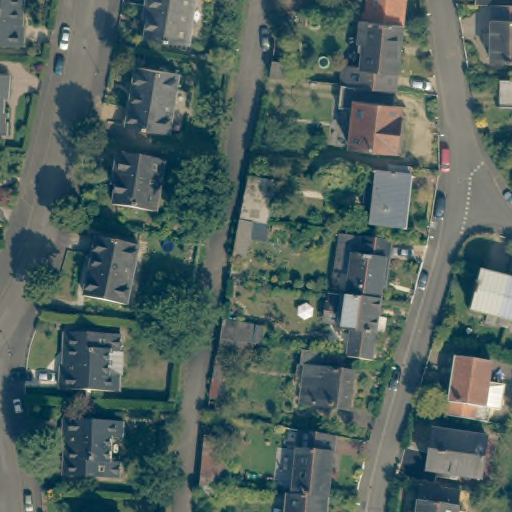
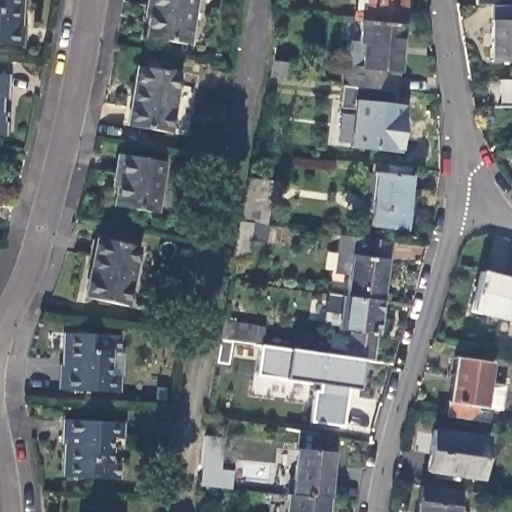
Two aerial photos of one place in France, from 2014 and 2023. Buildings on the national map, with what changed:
unchanged [(0,0),(17,0),(16,32),(20,32),(19,52),(0,51),(0,0)]
unchanged [(141,34),(144,14),(142,14),(144,0),(190,0),(184,40),(141,34)]
unchanged [(365,9),(366,0),(403,0),(401,20),(358,16),(352,15),(354,7),(365,9)]
unchanged [(508,0),(508,16),(486,15),(469,15),(470,0),(508,0)]
unchanged [(485,71),(486,15),(508,16),(512,16),(512,72),(485,71)]
unchanged [(394,86),(391,86),(342,81),(344,62),(358,64),(361,40),(356,39),(358,16),(401,20),(394,86)]
unchanged [(284,66),(283,80),(269,78),(271,65),(284,66)]
unchanged [(182,76),(172,135),(129,127),(140,69),(182,76)]
unchanged [(1,99),(0,113),(6,113),(5,135),(0,135),(0,75),(8,75),(7,99),(1,99)]
unchanged [(389,107),(404,109),(401,147),(349,142),(352,106),(337,104),(339,81),(342,81),(391,86),(389,107)]
unchanged [(503,112),(504,85),(512,85),(512,112),(503,112)]
unchanged [(154,215),(112,206),(116,187),(113,186),(120,155),(163,164),(154,215)]
unchanged [(408,183),(403,182),(397,229),(373,226),(379,180),(371,179),(371,171),(409,175),(408,183)]
unchanged [(231,261),(238,224),(247,182),(270,186),(263,227),(247,225),(240,263),(231,261)]
unchanged [(346,277),(333,275),(338,236),(386,242),(378,301),(344,297),(346,277)]
unchanged [(138,249),(127,307),(85,299),(97,241),(138,249)]
unchanged [(512,280),(512,322),(469,312),(479,272),(512,280)]
unchanged [(333,329),(333,323),(321,322),(324,295),(344,297),(378,301),(376,317),(384,318),(382,335),(374,333),(370,361),(345,357),(347,331),(333,329)]
demolished [(213,381),(219,342),(222,325),(261,331),(259,347),(251,346),(244,384),(213,381)]
new [(259,347),(251,346),(219,342),(222,325),(261,331),(259,347)]
unchanged [(118,333),(117,350),(106,350),(105,372),(115,372),(114,388),(56,385),(58,362),(62,362),(64,330),(118,333)]
new [(362,360),(357,389),(346,387),(340,426),(310,422),(314,392),(318,392),(320,382),(285,377),(256,374),(259,347),(289,348),(345,357),(362,360)]
unchanged [(458,348),(495,355),(487,399),(479,398),(477,411),(448,406),(458,348)]
demolished [(340,372),(351,373),(347,411),(298,405),(303,368),(298,367),(299,352),(341,357),(340,372)]
unchanged [(118,418),(117,435),(107,435),(106,457),(115,458),(115,476),(62,472),(63,441),(58,441),(59,416),(118,418)]
unchanged [(487,441),(478,482),(424,471),(433,430),(487,441)]
unchanged [(297,431),(332,435),(325,498),(291,496),(297,431)]
unchanged [(451,512),(411,512),(415,485),(453,491),(451,512)]
unchanged [(284,496),(291,496),(325,498),(324,512),(283,512),(284,496)]

